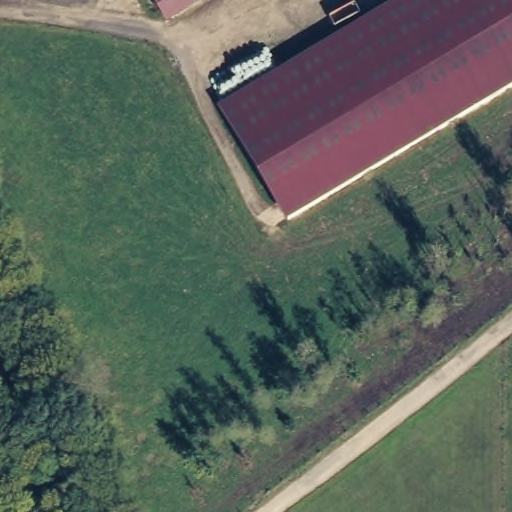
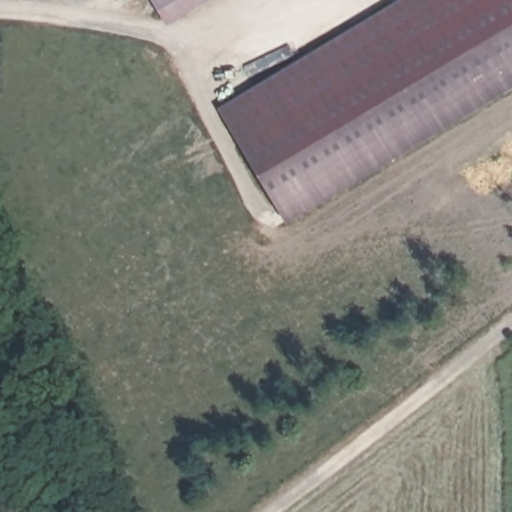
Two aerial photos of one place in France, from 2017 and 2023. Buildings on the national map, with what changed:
unchanged [(162,11),(155,0),(179,0),(162,11)]
unchanged [(422,0),(512,0),(512,75),(283,210),(227,115),(422,0)]

